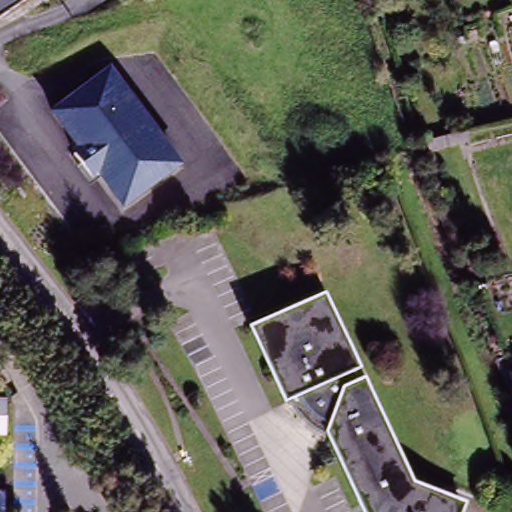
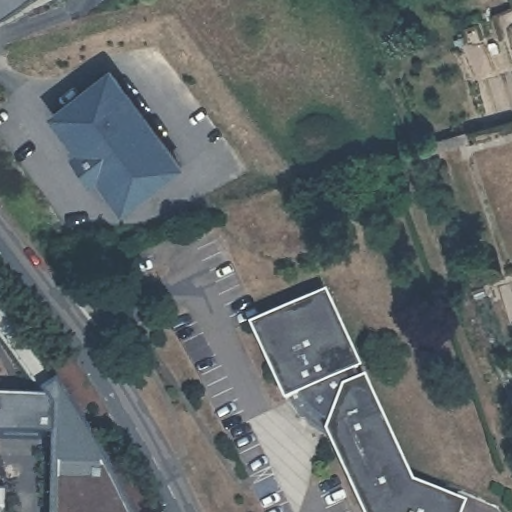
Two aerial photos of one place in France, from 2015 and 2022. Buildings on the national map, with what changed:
unchanged [(0,0),(24,0),(0,17),(0,0)]
unchanged [(184,164),(126,207),(60,114),(115,70),(184,164)]
unchanged [(470,145),(431,155),(428,142),(467,132),(470,145)]
unchanged [(330,299),(362,369),(357,372),(363,384),(368,382),(398,449),(416,489),(468,508),(466,512),(366,512),(332,437),(322,432),(316,427),(311,423),(306,418),(301,412),(297,407),(295,403),(290,404),(257,332),(330,299)]
new [(61,394),(104,456),(130,512),(53,512),(54,452),(13,452),(7,491),(0,491),(0,437),(10,438),(11,403),(45,406),(61,394)]
unchanged [(10,438),(0,437),(0,402),(11,403),(10,438)]
unchanged [(6,512),(0,512),(0,491),(7,491),(6,512)]

